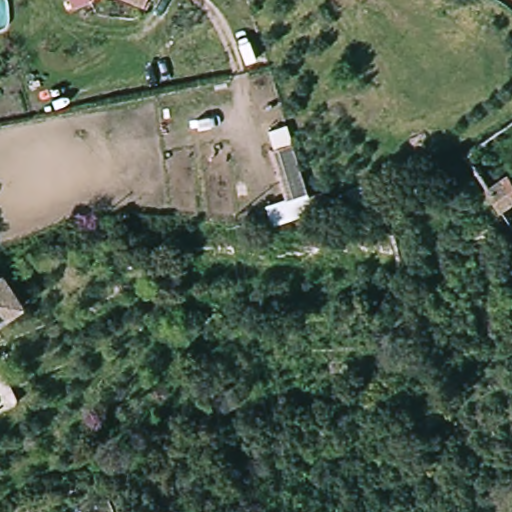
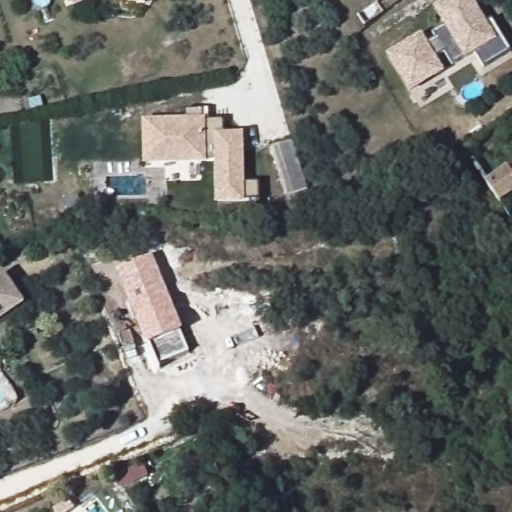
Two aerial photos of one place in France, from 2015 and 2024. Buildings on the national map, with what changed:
unchanged [(68,0),(89,0),(91,4),(74,11),(68,0)]
unchanged [(129,0),(152,0),(149,10),(129,0)]
new [(463,57),(452,64),(445,52),(435,57),(445,73),(409,95),(385,55),(421,34),(427,45),(436,39),(433,34),(444,27),(432,7),(445,0),(473,0),(487,23),(491,20),(510,52),(484,67),(476,54),(465,61),(463,57)]
new [(184,112),(203,110),(204,121),(225,121),(226,136),(243,136),(245,184),(262,183),(262,202),(220,203),(219,162),(167,164),(148,164),(147,137),(146,122),(184,122),(184,112)]
new [(292,141),(308,190),(286,198),(270,149),(292,141)]
unchanged [(502,204),(488,185),(510,169),(512,171),(512,196),(502,204)]
new [(184,331),(182,332),(190,352),(159,365),(151,343),(147,345),(117,269),(154,254),(184,331)]
unchanged [(24,309),(0,326),(0,292),(8,287),(24,309)]

